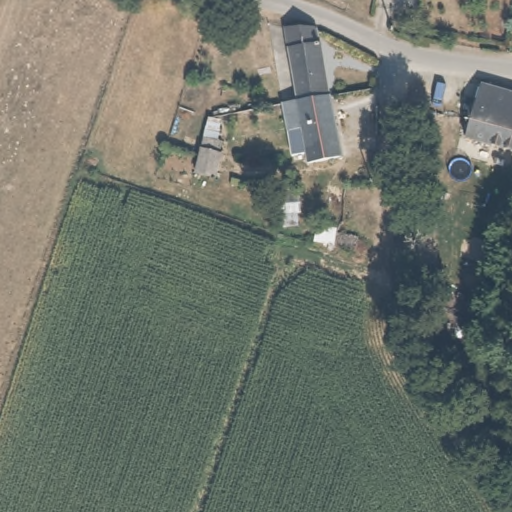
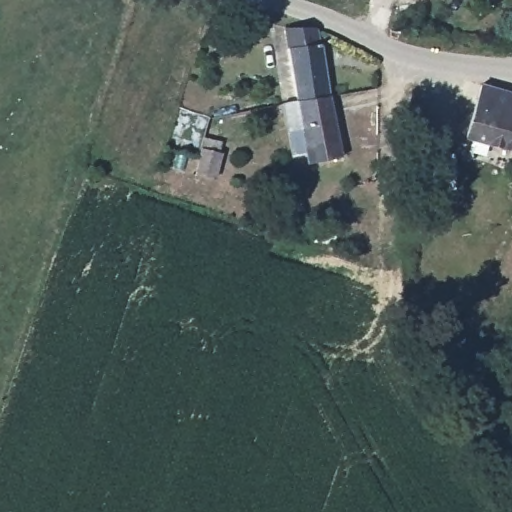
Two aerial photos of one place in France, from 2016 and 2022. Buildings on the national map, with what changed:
unchanged [(322,27),(324,40),(333,94),(299,99),(288,34),(322,27)]
unchanged [(512,148),(495,144),(465,135),(479,85),(512,94),(512,148)]
unchanged [(333,94),(345,159),(309,164),(299,99),(333,94)]
unchanged [(218,179),(194,171),(209,117),(225,117),(224,148),(218,179)]

